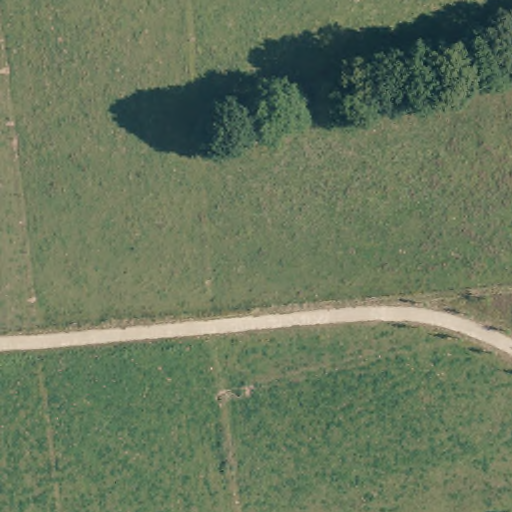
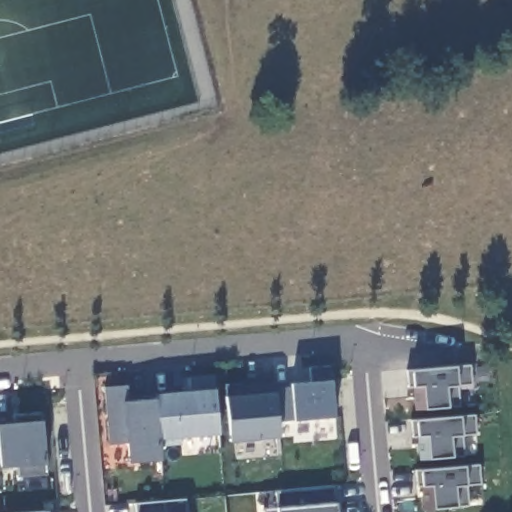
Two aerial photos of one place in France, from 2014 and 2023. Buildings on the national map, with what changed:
new [(456,384),(459,405),(448,406),(424,409),(412,409),(412,387),(411,370),(455,366),(469,363),(470,384),(456,384)]
new [(331,379),(335,419),(278,423),(280,437),(227,441),(225,396),(224,383),(243,382),(244,387),(291,384),(310,382),(308,368),(330,366),(331,379)]
new [(215,390),(219,435),(181,438),(182,449),(161,451),(162,460),(127,463),(125,443),(108,445),(104,388),(127,385),(131,400),(154,398),(154,393),(190,391),(189,377),(213,375),(215,390)]
new [(16,466),(0,466),(0,424),(18,422),(16,415),(40,414),(42,420),(47,464),(48,476),(16,478),(16,466)]
new [(461,435),(463,455),(452,457),(428,459),(417,460),(417,436),(415,420),(458,417),(474,414),(475,434),(461,435)]
new [(479,482),(465,484),(467,506),(455,506),(435,508),(421,510),(420,487),(418,470),(464,466),(477,465),(479,482)]
new [(337,512),(264,512),(264,508),(277,507),(275,492),(334,487),(336,504),(337,512)]
new [(134,512),(132,504),(187,500),(187,512),(134,512)]
new [(50,512),(18,512),(50,510),(50,512)]

